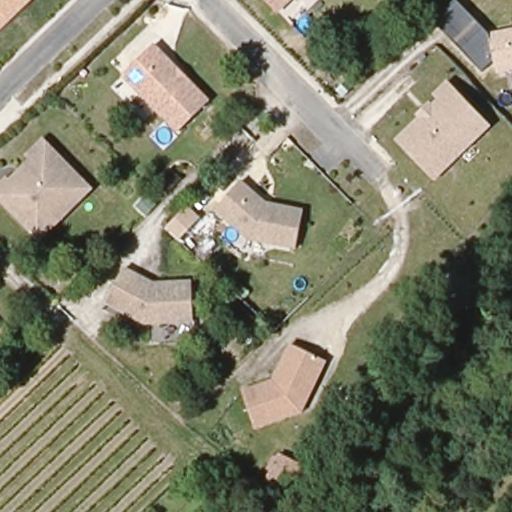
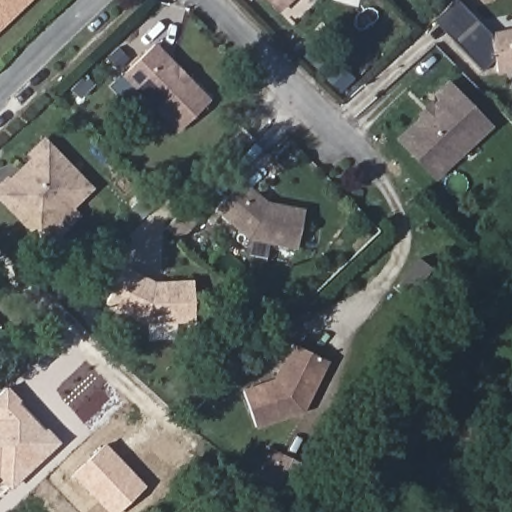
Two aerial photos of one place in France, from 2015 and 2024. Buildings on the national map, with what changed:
unchanged [(0,26),(0,0),(28,0),(15,12),(9,18),(0,26)]
unchanged [(268,0),(287,0),(277,10),(268,0)]
unchanged [(496,76),(489,38),(512,33),(512,72),(496,76)]
unchanged [(122,77),(154,47),(177,71),(186,80),(209,103),(178,133),(122,77)]
unchanged [(436,181),(395,139),(418,118),(415,114),(430,100),(434,103),(438,100),(432,92),(448,79),(494,126),(436,181)]
unchanged [(0,185),(7,179),(10,182),(21,170),(33,159),(28,154),(44,139),(49,144),(91,187),(75,202),(40,237),(27,224),(0,195),(0,185)]
unchanged [(239,179),(265,202),(302,209),(295,247),(247,237),(214,208),(239,179)]
unchanged [(155,282),(194,281),(195,319),(146,321),(107,301),(125,267),(155,282)]
unchanged [(241,392),(273,381),(291,344),(325,361),(300,412),(254,427),(241,392)]
new [(0,477),(0,392),(6,386),(21,400),(20,402),(44,429),(46,427),(60,442),(10,488),(0,477)]
new [(119,512),(107,512),(73,476),(105,443),(145,486),(119,512)]

